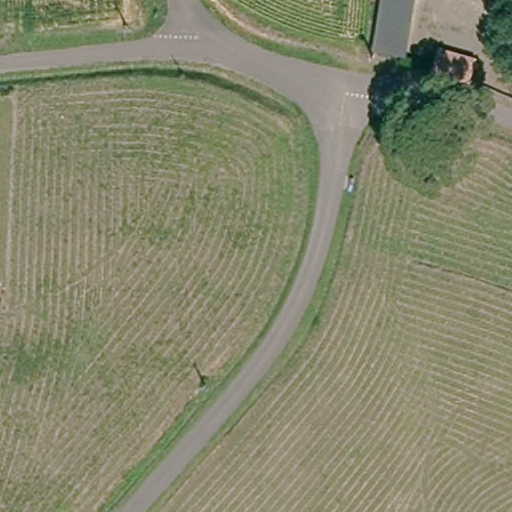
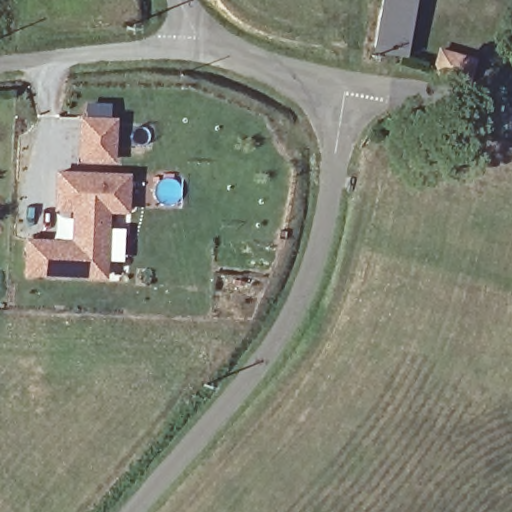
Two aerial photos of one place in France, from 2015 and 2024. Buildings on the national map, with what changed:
unchanged [(383,0),(415,0),(407,54),(376,48),(383,0)]
unchanged [(430,54),(462,61),(457,79),(426,72),(430,54)]
new [(87,117),(87,105),(111,106),(111,117),(118,117),(116,166),(78,165),(79,116),(87,117)]
new [(131,173),(130,214),(110,213),(110,228),(125,228),(124,261),(109,261),(107,279),(24,277),(25,238),(71,240),(72,211),(54,210),(55,170),(131,173)]

